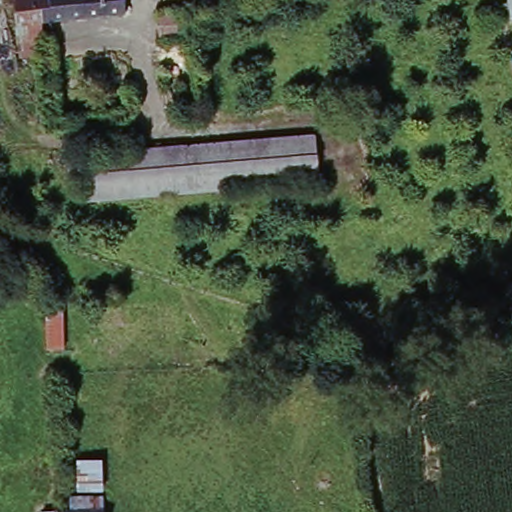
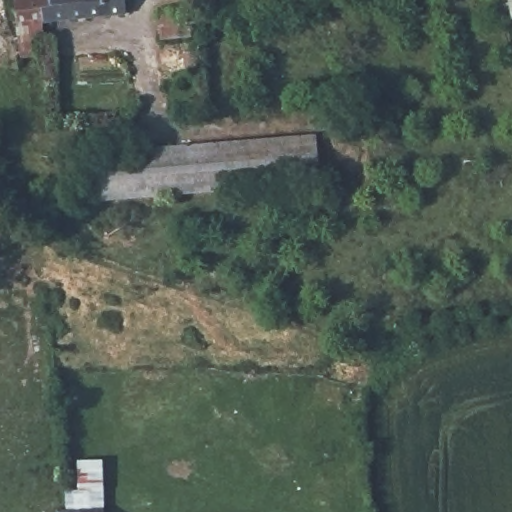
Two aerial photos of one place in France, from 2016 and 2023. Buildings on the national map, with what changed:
unchanged [(19,30),(15,31),(12,1),(12,0),(126,0),(128,16),(44,28),(49,61),(23,64),(19,30)]
unchanged [(182,8),(186,31),(157,35),(154,11),(182,8)]
unchanged [(313,137),(317,184),(129,199),(125,153),(313,137)]
unchanged [(85,202),(82,157),(125,153),(129,199),(85,202)]
unchanged [(71,503),(103,501),(104,512),(73,512),(71,503)]

